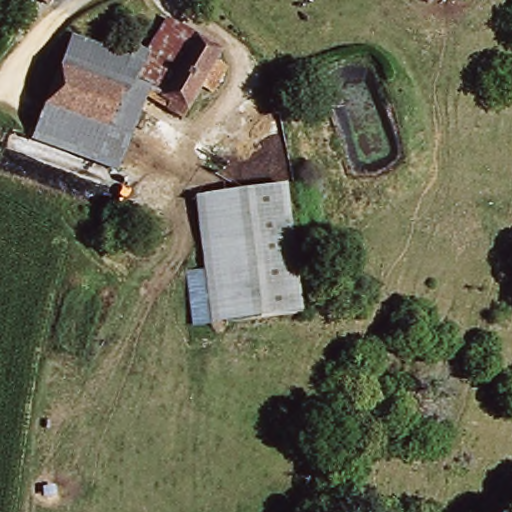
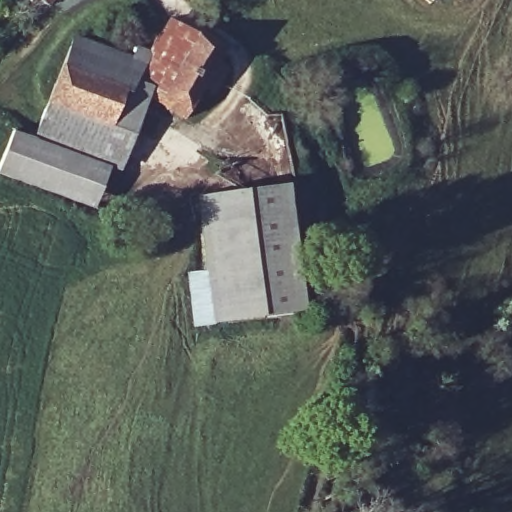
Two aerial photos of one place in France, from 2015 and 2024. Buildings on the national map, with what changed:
unchanged [(161,18),(222,57),(194,105),(183,100),(175,112),(147,95),(128,80),(138,59),(161,18)]
unchanged [(120,60),(124,51),(138,59),(128,80),(147,95),(115,175),(25,140),(64,38),(120,60)]
new [(25,140),(109,172),(94,210),(0,175),(0,160),(11,132),(27,135),(25,140)]
unchanged [(203,186),(214,187),(205,315),(194,314),(203,186)]
unchanged [(214,187),(290,193),(284,318),(205,315),(214,187)]

